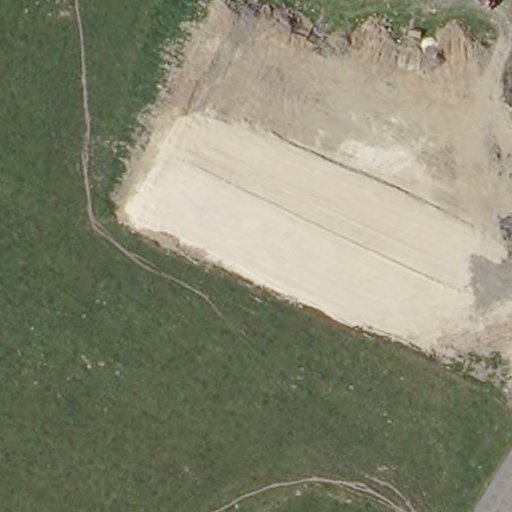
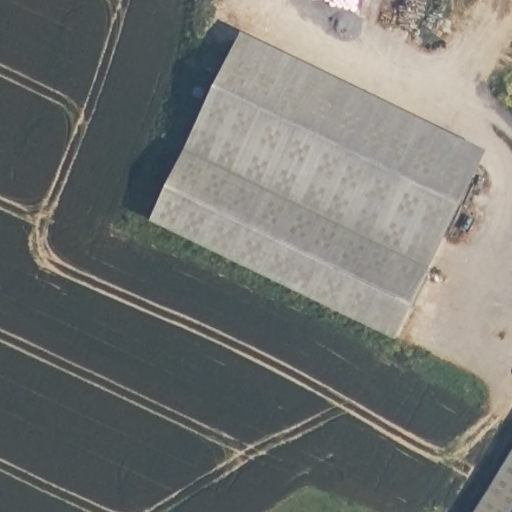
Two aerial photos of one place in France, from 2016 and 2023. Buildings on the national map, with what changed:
new [(487,150),(402,333),(160,220),(253,27),(487,150)]
unchanged [(512,455),(512,512),(478,512),(512,455)]

